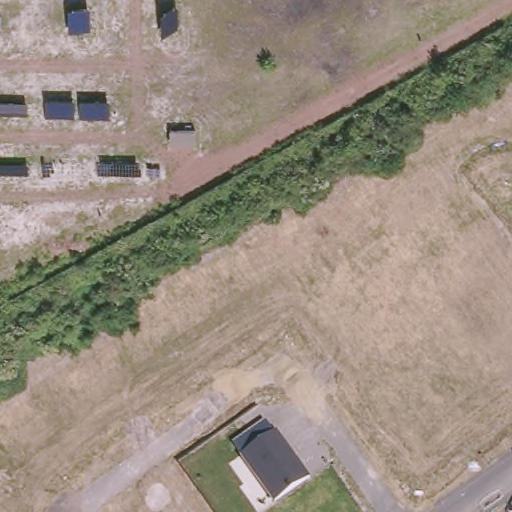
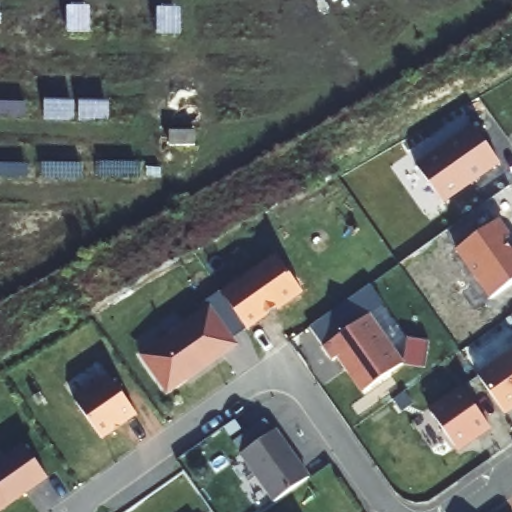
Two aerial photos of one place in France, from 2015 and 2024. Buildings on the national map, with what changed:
new [(443,203),(417,166),(474,125),(500,163),(443,203)]
new [(500,219),(512,235),(504,240),(512,252),(512,284),(490,299),(456,250),(500,219)]
new [(303,294),(247,330),(220,293),(275,254),(289,274),(303,294)]
new [(310,327),(370,284),(384,305),(372,313),(323,347),(310,327)]
new [(211,303),(237,342),(168,394),(140,354),(211,303)]
new [(404,361),(360,389),(335,356),(331,359),(323,347),(372,313),(404,361)]
new [(478,370),(512,347),(512,405),(505,411),(478,370)]
new [(108,374),(135,411),(102,437),(73,398),(108,374)]
new [(460,385),(487,426),(458,446),(430,406),(460,385)]
unchanged [(271,501),(238,454),(253,443),(245,433),(266,418),(273,429),(275,427),(307,475),(271,501)]
new [(23,440),(47,473),(0,507),(0,456),(23,440)]

